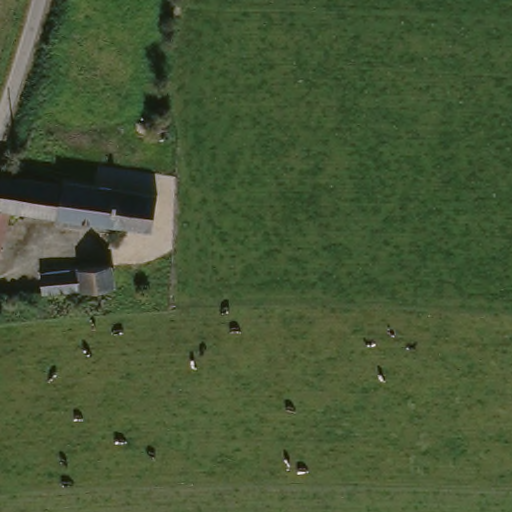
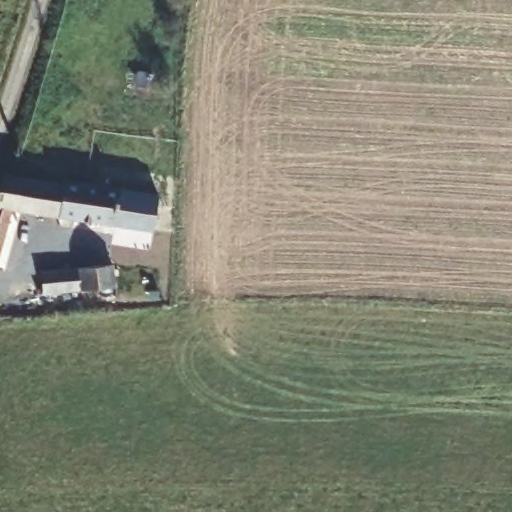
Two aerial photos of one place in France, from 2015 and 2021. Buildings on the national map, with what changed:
unchanged [(0,254),(0,184),(3,174),(63,182),(58,220),(11,214),(0,254)]
unchanged [(63,182),(120,189),(115,227),(58,220),(63,182)]
unchanged [(120,189),(154,194),(160,196),(154,232),(115,227),(120,189)]
unchanged [(43,282),(79,276),(114,271),(118,290),(81,297),(46,302),(43,282)]

